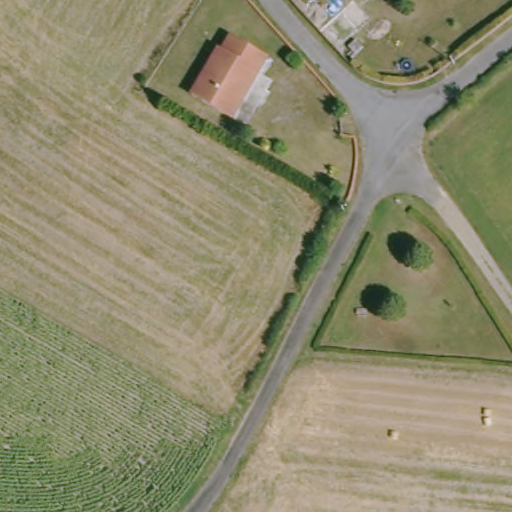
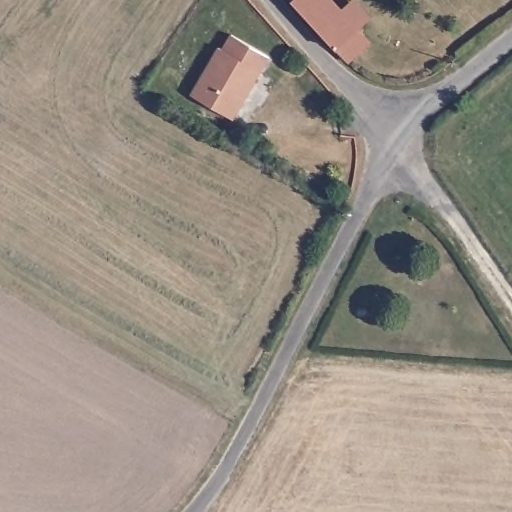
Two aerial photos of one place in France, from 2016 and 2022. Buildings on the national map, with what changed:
new [(333,0),(343,11),(354,1),(370,19),(359,30),(371,44),(350,63),(338,51),(293,3),(296,0),(333,0)]
unchanged [(260,61),(245,85),(247,91),(236,109),(198,86),(225,41),(260,61)]

